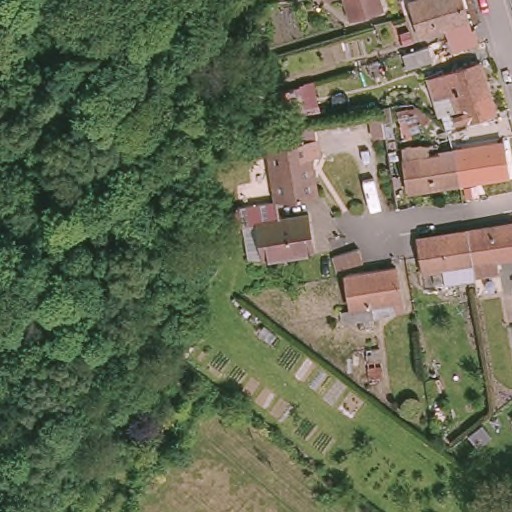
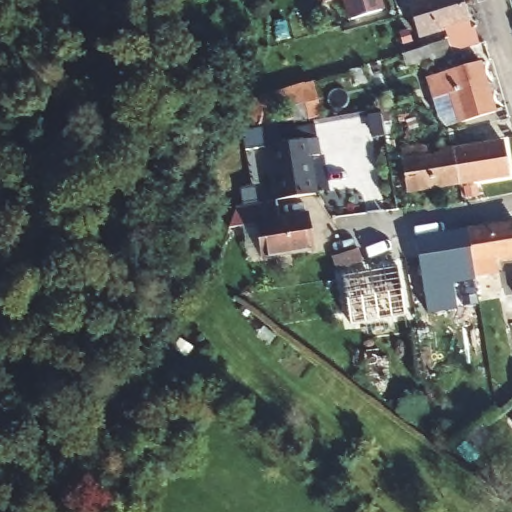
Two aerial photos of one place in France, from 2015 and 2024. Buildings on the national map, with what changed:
unchanged [(376,8),(346,18),(341,0),(374,0),(376,8)]
unchanged [(444,48),(439,35),(438,35),(434,24),(409,32),(398,0),(400,0),(452,0),(461,27),(464,26),(469,40),(444,48)]
unchanged [(443,120),(441,113),(451,110),(440,77),(429,81),(427,75),(429,74),(427,66),(443,61),(441,54),(466,46),(486,106),(443,120)]
unchanged [(262,147),(313,139),(316,156),(306,158),(312,192),(271,199),(262,147)]
unchanged [(496,140),(501,172),(452,181),(446,149),(496,140)]
unchanged [(452,181),(400,189),(394,158),(413,155),(411,146),(424,144),(426,153),(446,149),(452,181)]
unchanged [(274,219),(304,215),(308,247),(256,255),(251,224),(224,229),(226,227),(233,206),(271,199),(274,219)]
unchanged [(463,266),(458,233),(508,224),(512,251),(512,258),(487,262),(489,278),(466,282),(463,266)]
unchanged [(458,233),(463,266),(443,268),(444,279),(432,281),(431,271),(409,274),(405,242),(458,233)]
unchanged [(334,273),(385,265),(392,305),(386,307),(384,299),(339,306),(334,273)]

